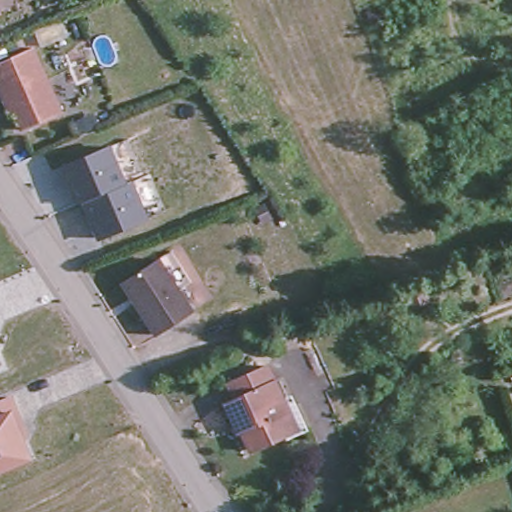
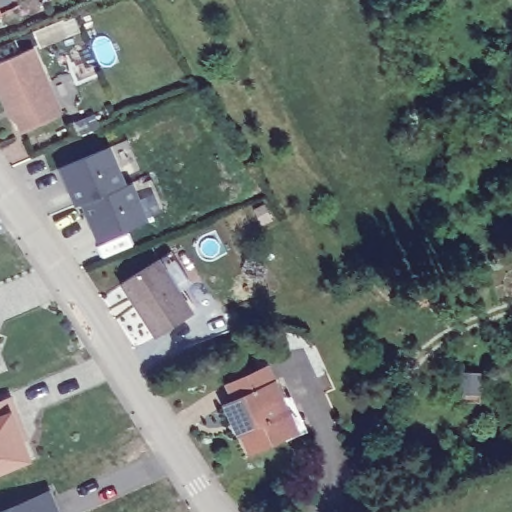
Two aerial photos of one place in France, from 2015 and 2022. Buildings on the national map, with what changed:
unchanged [(0,92),(0,62),(32,48),(61,113),(22,130),(15,114),(11,116),(0,92)]
unchanged [(83,203),(75,208),(56,165),(107,143),(123,182),(132,177),(151,217),(99,238),(83,203)]
unchanged [(158,259),(192,312),(156,336),(122,283),(158,259)]
unchanged [(236,399),(228,384),(267,366),(287,410),(282,412),(292,432),(251,451),(243,432),(240,433),(227,403),(236,399)]
unchanged [(14,408),(18,418),(26,436),(21,438),(21,439),(29,458),(0,470),(0,401),(10,397),(14,408)]
new [(60,512),(0,512),(0,510),(50,488),(60,512)]

